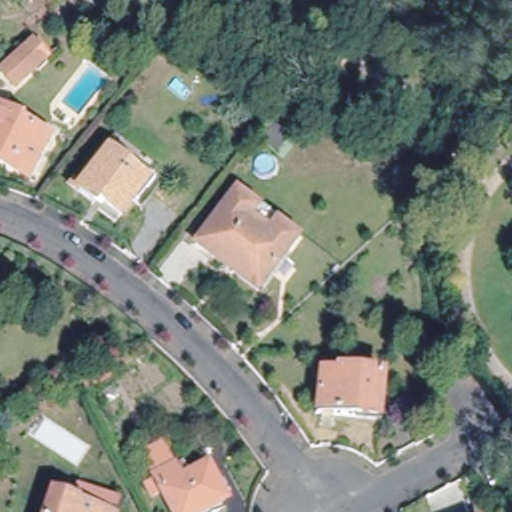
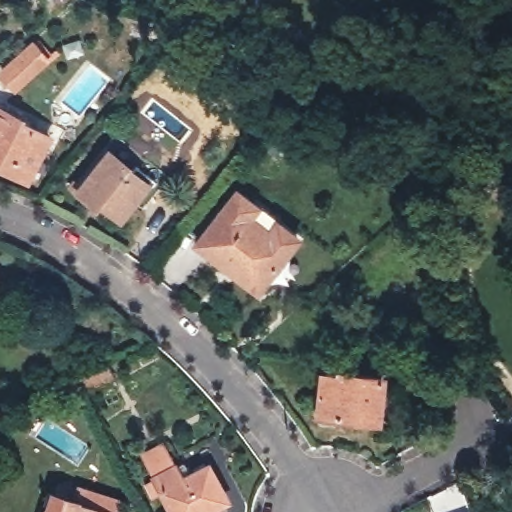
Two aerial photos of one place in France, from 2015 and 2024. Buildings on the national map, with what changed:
unchanged [(28,48),(39,61),(13,85),(1,72),(28,48)]
unchanged [(0,169),(0,117),(3,119),(6,112),(21,120),(18,127),(46,141),(30,174),(26,182),(0,169)]
unchanged [(137,202),(133,199),(116,222),(76,192),(105,154),(108,151),(124,162),(123,165),(130,170),(135,162),(155,178),(147,189),(137,202)]
unchanged [(260,294),(202,248),(242,196),(262,212),(283,227),(301,242),(260,294)]
unchanged [(324,398),(327,369),(343,371),(343,369),(385,372),(381,416),(338,412),(323,410),(324,398)]
unchanged [(184,479),(212,465),(228,496),(195,512),(179,512),(146,451),(164,441),(184,479)]
unchanged [(64,503),(63,507),(83,512),(39,512),(43,497),(64,503)]

